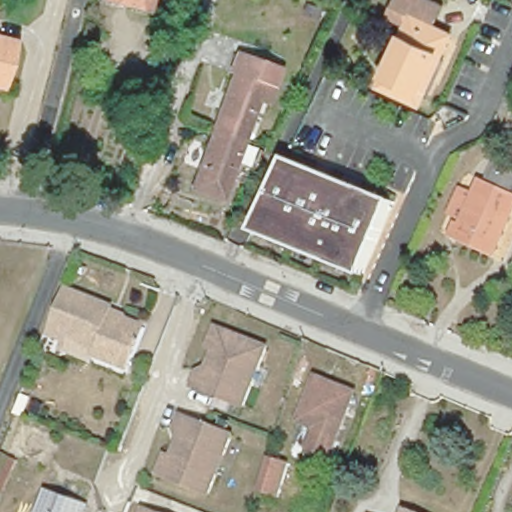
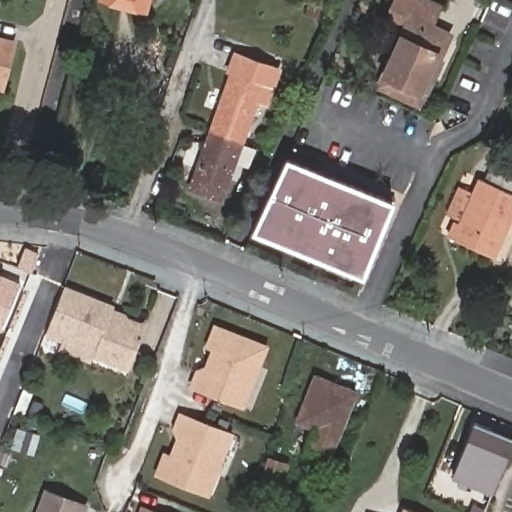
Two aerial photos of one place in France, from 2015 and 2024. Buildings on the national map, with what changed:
unchanged [(141,9),(108,0),(143,0),(141,9)]
unchanged [(414,19),(393,9),(397,0),(426,0),(446,10),(436,30),(453,39),(422,106),(382,88),(414,19)]
unchanged [(5,90),(0,89),(0,39),(16,44),(5,90)]
unchanged [(227,81),(222,79),(230,57),(274,72),(263,107),(253,104),(236,150),(206,140),(227,81)]
unchanged [(215,207),(187,197),(206,140),(236,150),(215,207)]
unchanged [(497,254),(455,235),(461,221),(466,224),(486,180),(491,181),(504,154),(512,158),(512,220),(497,254)]
unchanged [(396,200),(362,272),(250,230),(285,158),(396,200)]
new [(1,330),(0,330),(0,274),(21,282),(1,330)]
unchanged [(110,307),(144,321),(142,326),(128,366),(91,352),(95,345),(64,333),(62,338),(43,331),(61,285),(111,305),(110,307)]
unchanged [(271,351),(263,370),(255,372),(251,382),(255,391),(247,410),(196,390),(202,375),(219,367),(221,361),(217,351),(224,332),(271,351)]
unchanged [(303,445),(310,426),(294,420),(310,375),(348,390),(326,453),(303,445)]
unchanged [(236,443),(228,463),(219,466),(216,475),(219,483),(211,503),(165,484),(172,465),(183,461),(186,455),(178,437),(184,422),(236,443)]
new [(488,431),(490,429),(512,438),(512,441),(491,495),(451,479),(472,425),(488,431)]
new [(16,427),(41,435),(34,455),(10,448),(16,427)]
unchanged [(268,455),(290,462),(279,495),(258,488),(268,455)]
unchanged [(80,505),(87,507),(85,512),(40,512),(47,492),(80,505)]
unchanged [(138,512),(141,506),(157,512),(138,512)]
unchanged [(410,512),(405,512),(406,510),(410,512)]

